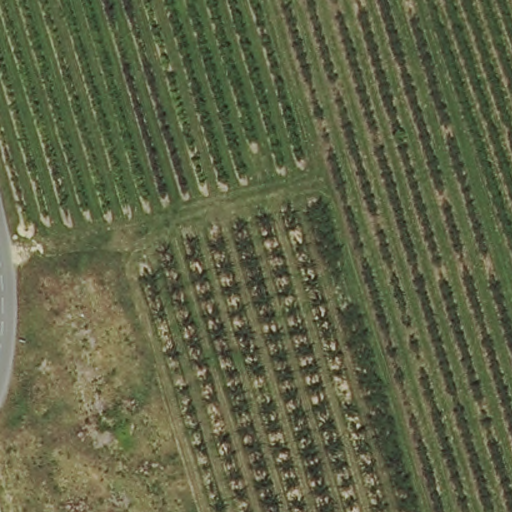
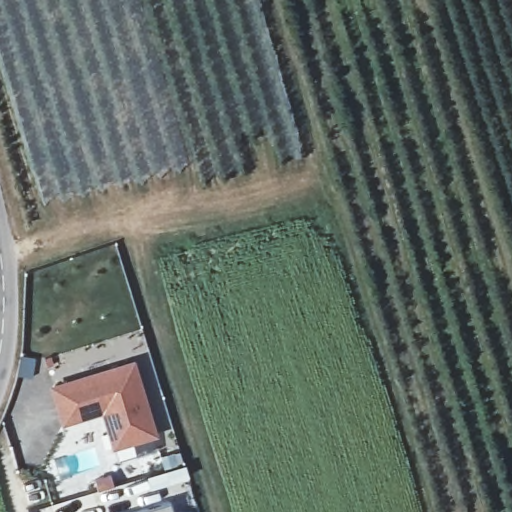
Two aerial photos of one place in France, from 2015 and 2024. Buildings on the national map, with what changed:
new [(112,450),(101,415),(62,427),(50,385),(137,359),(158,437),(112,450)]
new [(169,503),(172,512),(140,512),(169,503)]

